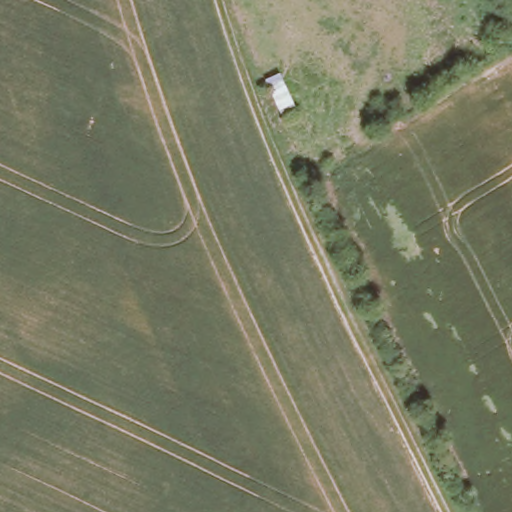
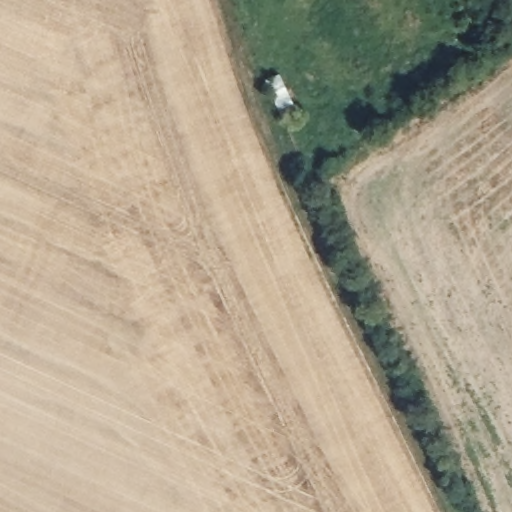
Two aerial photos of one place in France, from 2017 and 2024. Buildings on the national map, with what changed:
unchanged [(265,73),(280,67),(300,114),(285,121),(265,73)]

